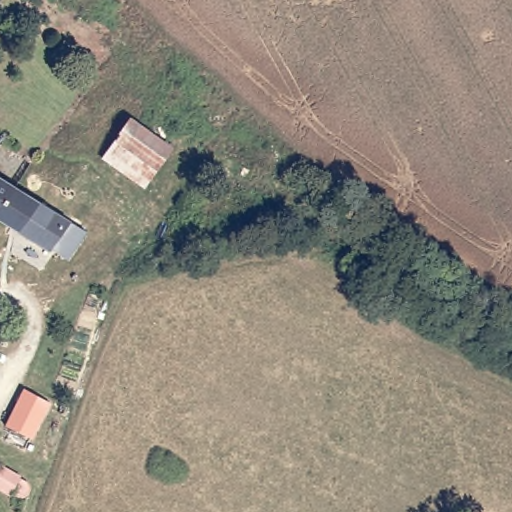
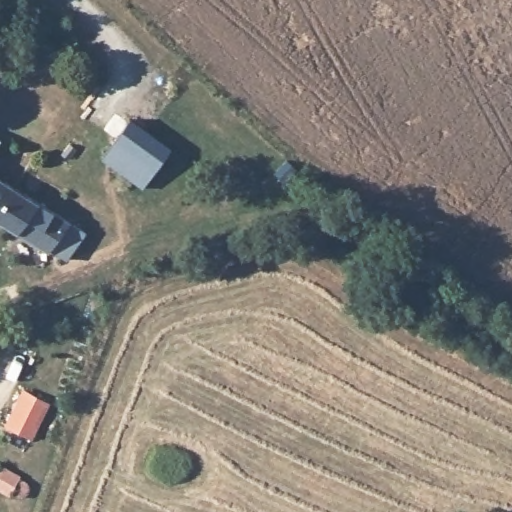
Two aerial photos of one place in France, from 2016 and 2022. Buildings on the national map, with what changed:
unchanged [(101,158),(130,118),(172,149),(142,188),(101,158)]
unchanged [(5,143),(0,151),(0,140),(5,143)]
unchanged [(2,181),(0,184),(0,179),(2,181)]
unchanged [(0,219),(0,184),(2,181),(65,220),(52,245),(49,246),(35,236),(31,239),(0,219)]
unchanged [(8,442),(7,441),(5,439),(15,420),(9,417),(24,388),(46,399),(50,401),(23,449),(8,442)]
unchanged [(16,499),(14,498),(0,491),(0,482),(5,472),(20,478),(19,482),(25,487),(30,489),(26,503),(16,499)]

